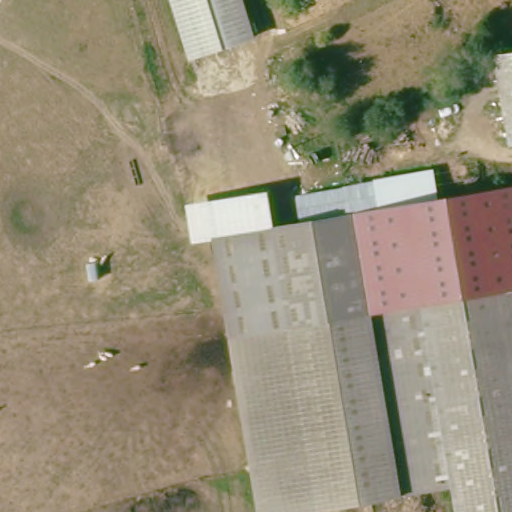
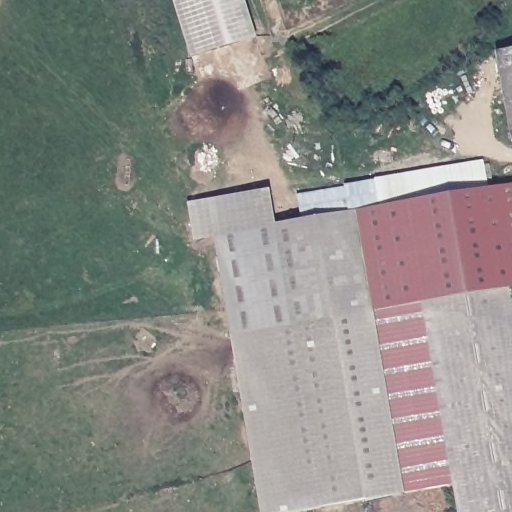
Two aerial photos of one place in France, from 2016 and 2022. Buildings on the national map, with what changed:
unchanged [(188,54),(172,0),(243,0),(253,36),(188,54)]
unchanged [(512,116),(499,59),(512,55),(512,116)]
unchanged [(361,215),(512,193),(512,391),(260,467),(251,441),(236,337),(233,327),(218,235),(306,223),(303,197),(349,191),(353,216),(361,215)]
unchanged [(512,512),(461,512),(458,488),(302,512),(260,512),(253,468),(260,467),(512,391),(512,512)]

